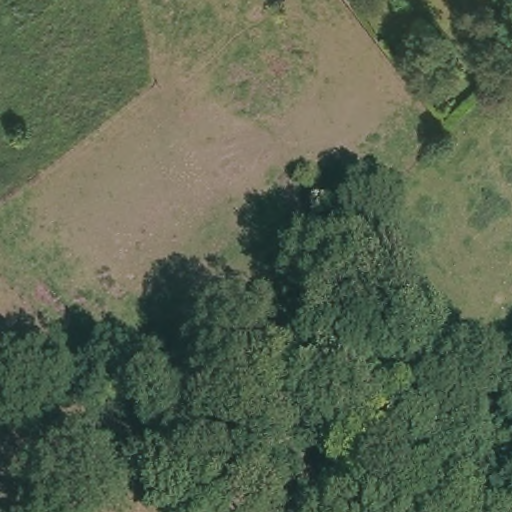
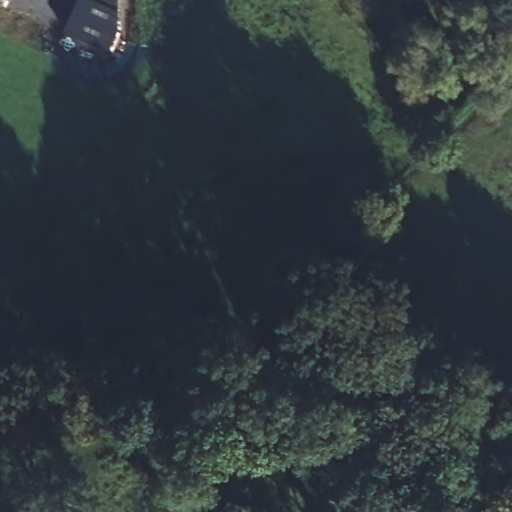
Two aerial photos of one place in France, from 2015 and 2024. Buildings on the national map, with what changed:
new [(111,51),(63,32),(77,0),(118,0),(118,34),(111,51)]
demolished [(511,397),(512,396),(512,412),(510,406),(511,397)]

